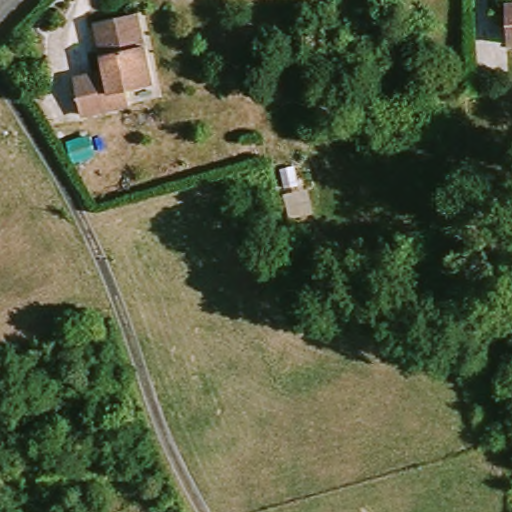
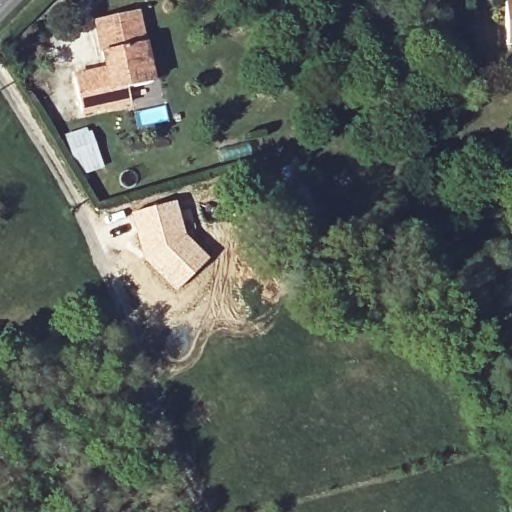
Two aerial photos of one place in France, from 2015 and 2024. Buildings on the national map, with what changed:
unchanged [(121,111),(89,119),(79,83),(112,74),(100,25),(142,14),(159,86),(133,92),(136,108),(121,111)]
new [(175,200),(185,235),(208,259),(175,292),(142,256),(128,214),(175,200)]

